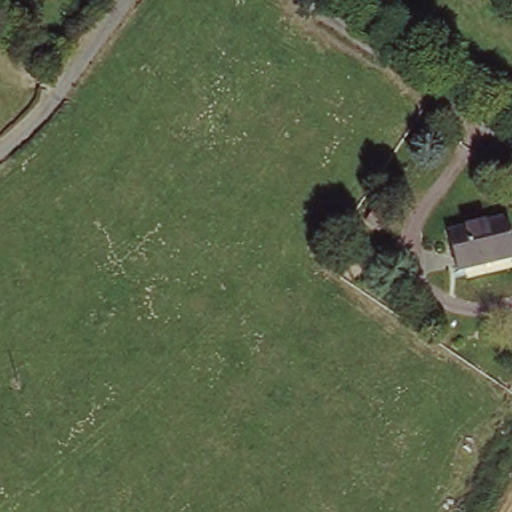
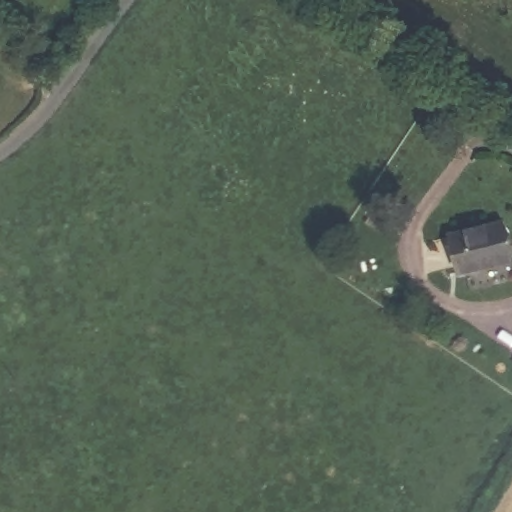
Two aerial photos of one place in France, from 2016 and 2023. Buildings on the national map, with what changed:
unchanged [(512,243),(512,255),(462,272),(450,235),(503,217),(512,243)]

